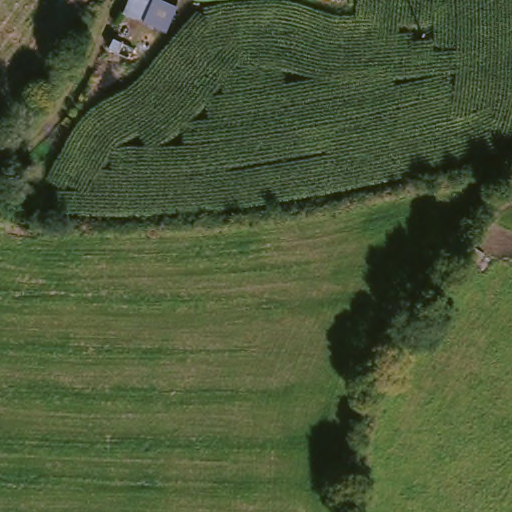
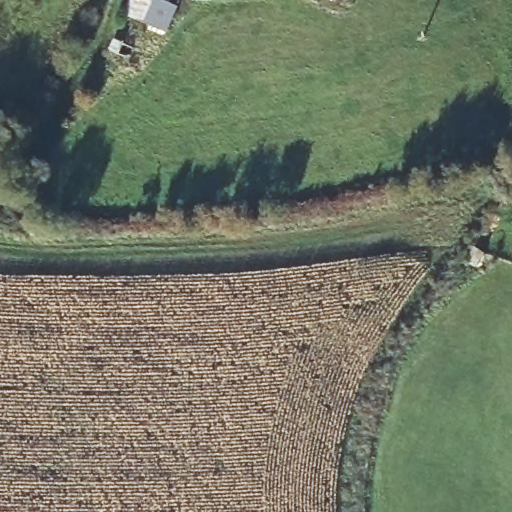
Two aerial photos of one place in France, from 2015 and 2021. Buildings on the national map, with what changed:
unchanged [(161,6),(148,30),(120,19),(127,0),(152,0),(152,1),(161,6)]
unchanged [(481,256),(470,273),(459,267),(470,252),(481,256)]

